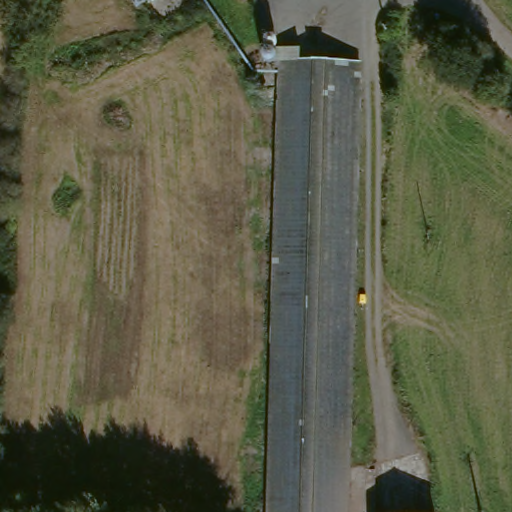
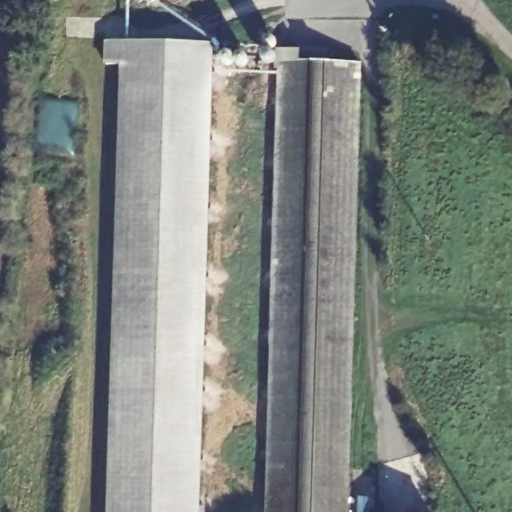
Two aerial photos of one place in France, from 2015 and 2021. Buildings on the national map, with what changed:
unchanged [(159,0),(139,13),(130,0),(159,0)]
new [(271,35),(274,36),(276,37),(277,43),(276,59),(276,61),(273,64),(271,65),(268,65),(266,64),(263,61),(263,57),(263,46),(263,40),(264,38),(264,37),(265,37),(268,36),(271,35)]
new [(104,40),(214,41),(200,512),(108,512),(121,64),(103,61),(104,40)]
new [(241,52),(245,53),(248,54),(249,57),(250,59),(250,61),(248,64),(246,66),(244,66),(231,65),(226,65),(224,64),(223,62),(222,61),(221,59),(221,57),(222,56),(222,55),(223,54),(223,53),(224,52),(227,52),(228,52),(241,52)]
unchanged [(360,70),(331,512),(256,512),(285,65),(360,70)]

